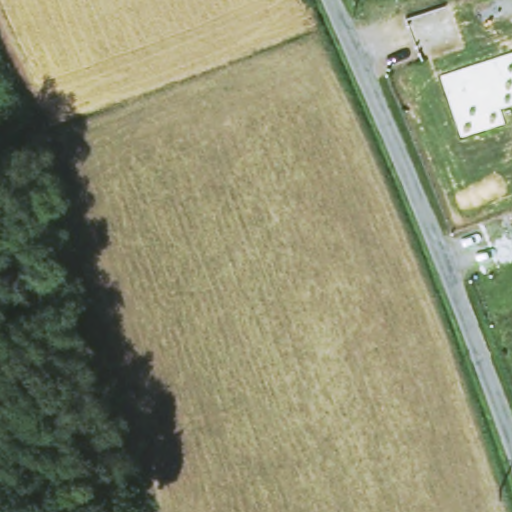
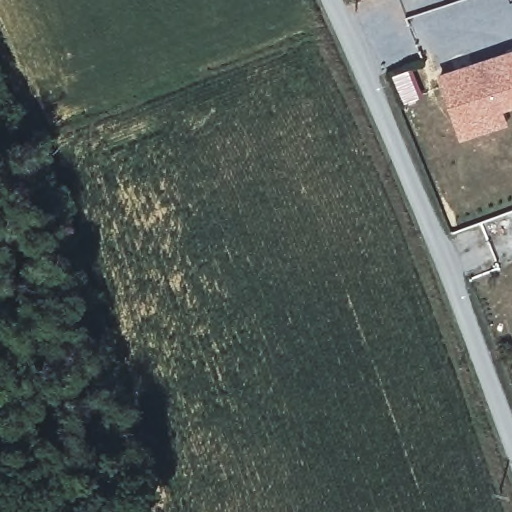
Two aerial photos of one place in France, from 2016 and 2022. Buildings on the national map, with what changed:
new [(503,110),(509,125),(459,141),(438,74),(512,49),(512,107),(503,110)]

